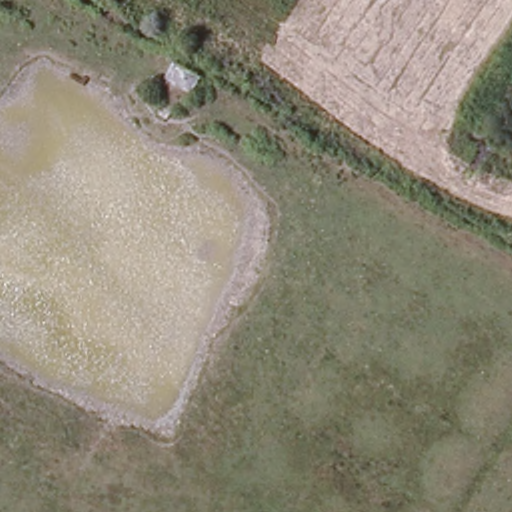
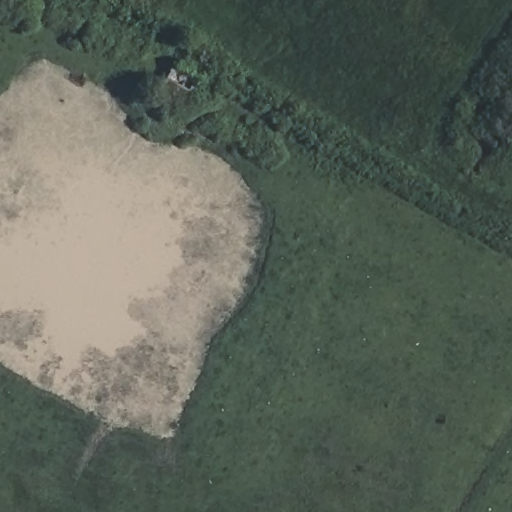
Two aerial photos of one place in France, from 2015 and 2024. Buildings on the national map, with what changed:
unchanged [(181,111),(175,108),(165,117),(160,110),(169,103),(165,96),(169,91),(185,107),(181,111)]

